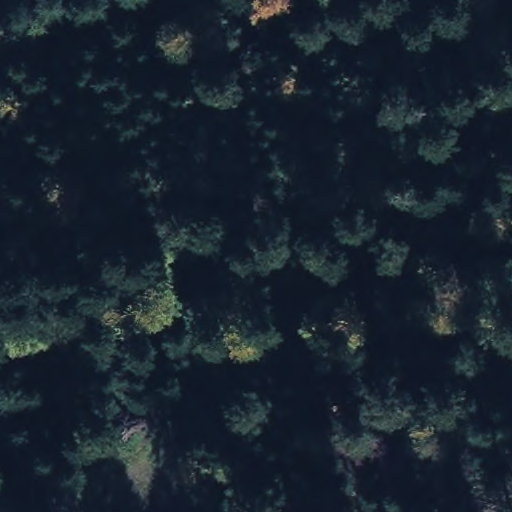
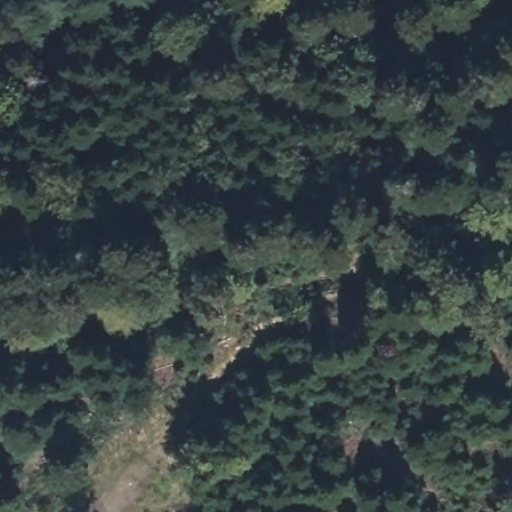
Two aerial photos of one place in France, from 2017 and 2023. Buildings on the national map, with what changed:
[]

